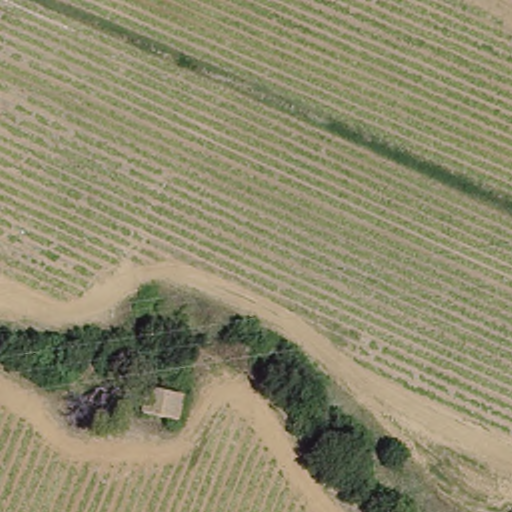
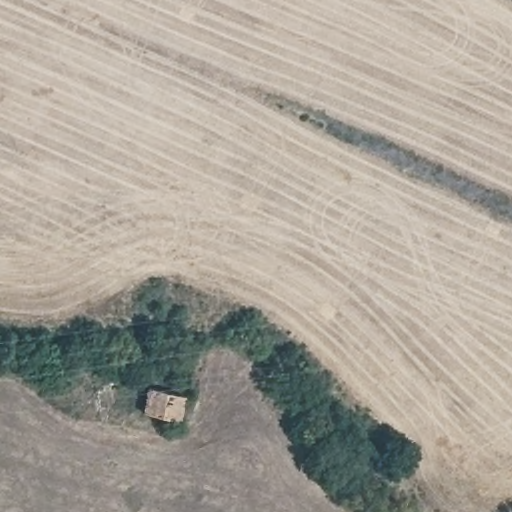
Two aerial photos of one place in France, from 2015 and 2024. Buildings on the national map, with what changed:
unchanged [(186,420),(147,411),(152,386),(191,394),(186,420)]

